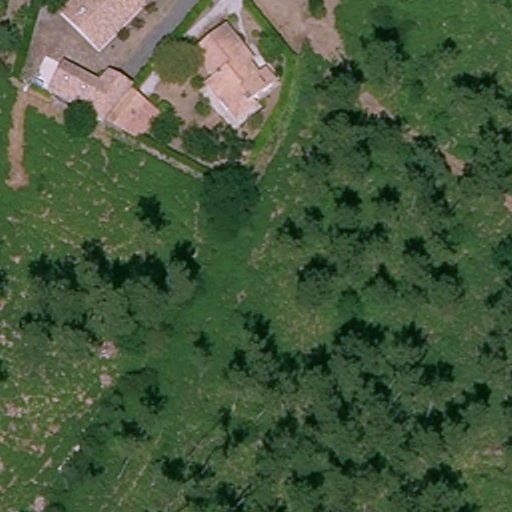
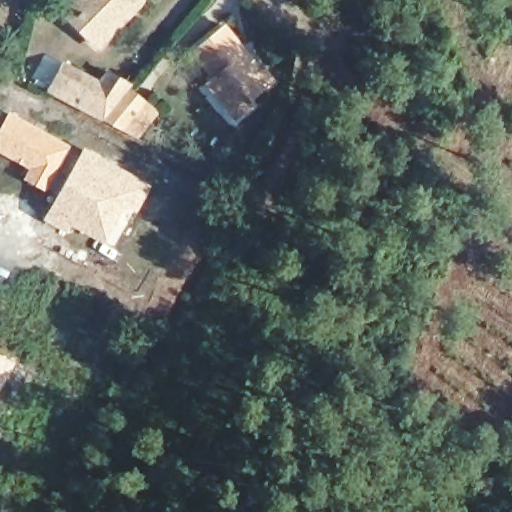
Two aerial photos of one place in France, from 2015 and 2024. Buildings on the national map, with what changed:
unchanged [(60,0),(141,0),(141,1),(91,49),(54,6),(60,0)]
unchanged [(237,113),(213,84),(220,78),(199,51),(229,25),(251,53),(246,59),(262,79),(268,74),(279,89),(257,108),(243,120),(237,113)]
unchanged [(56,99),(72,70),(103,88),(117,66),(141,80),(133,93),(148,106),(125,134),(106,125),(56,99)]
new [(10,109),(72,145),(47,194),(22,179),(27,169),(0,154),(0,126),(10,109)]
new [(84,145),(151,184),(113,249),(71,228),(67,234),(42,219),(84,145)]
new [(19,363),(0,395),(0,353),(19,363)]

